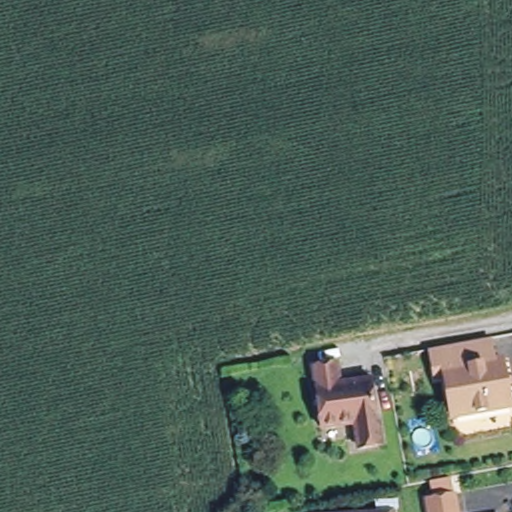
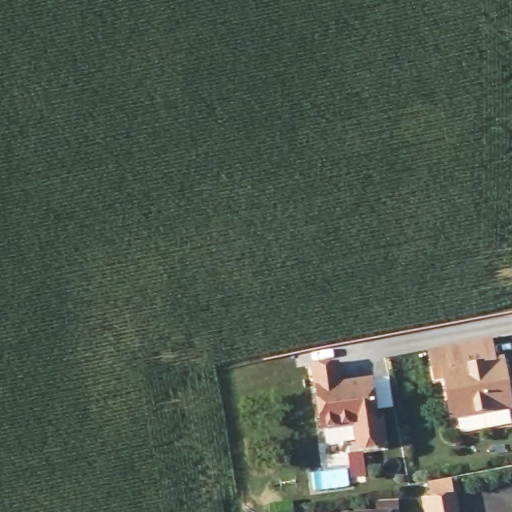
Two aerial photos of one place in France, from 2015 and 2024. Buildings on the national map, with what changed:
unchanged [(491,342),(495,368),(507,366),(512,410),(455,417),(448,376),(437,377),(432,352),(491,342)]
unchanged [(350,390),(372,388),(380,452),(358,454),(356,428),(320,432),(311,370),(347,365),(350,390)]
unchanged [(432,491),(437,490),(452,488),(454,503),(457,502),(458,512),(428,512),(427,507),(435,506),(432,491)]
unchanged [(396,510),(396,512),(340,512),(396,510)]

